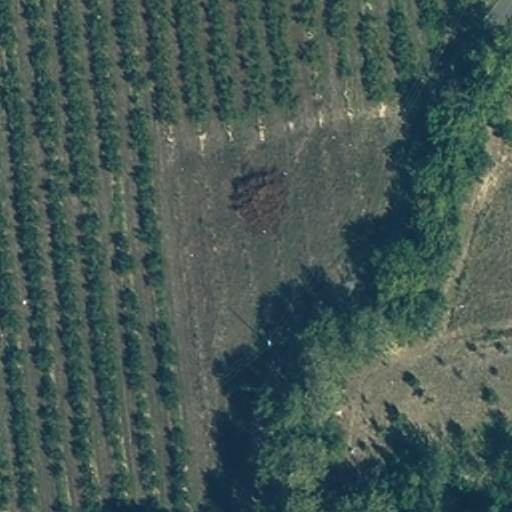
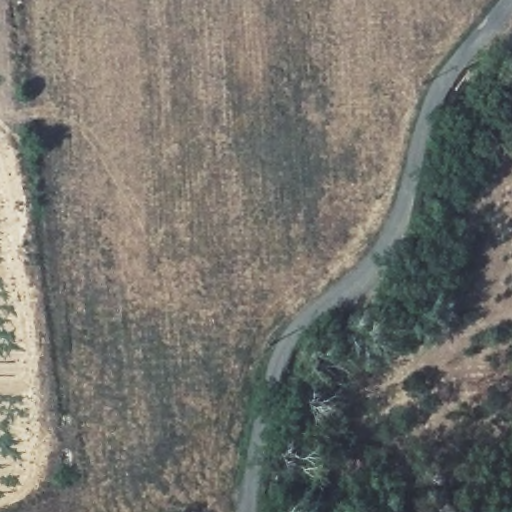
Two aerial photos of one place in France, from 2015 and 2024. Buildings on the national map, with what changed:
[]

